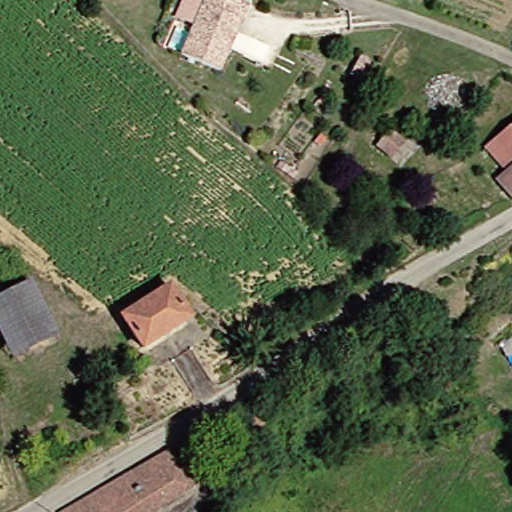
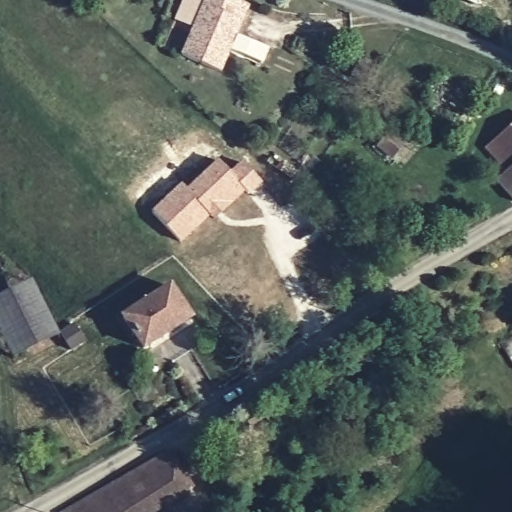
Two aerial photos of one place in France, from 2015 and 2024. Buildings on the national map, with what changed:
unchanged [(218,77),(179,60),(205,0),(224,0),(247,10),(240,25),(230,48),(218,77)]
unchanged [(512,135),(512,168),(497,157),(512,135)]
new [(187,189),(219,160),(229,173),(241,161),(262,184),(250,195),(246,191),(212,221),(209,217),(181,244),(151,212),(182,184),(187,189)]
unchanged [(512,191),(512,200),(507,197),(512,191)]
unchanged [(57,339),(10,363),(0,344),(0,302),(26,289),(32,286),(37,298),(57,339)]
unchanged [(122,326),(169,297),(189,326),(140,356),(122,326)]
unchanged [(164,453),(172,465),(191,494),(162,512),(64,512),(140,468),(164,453)]

